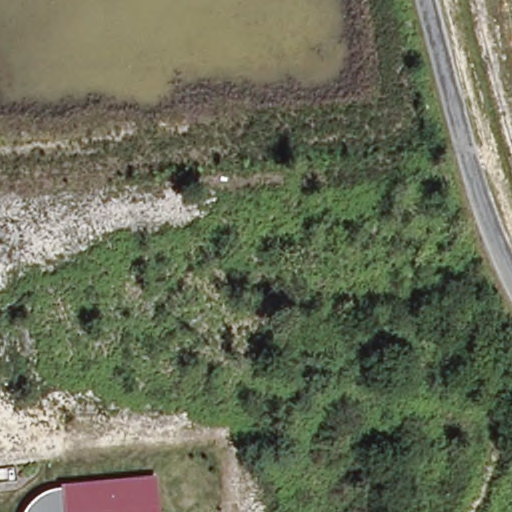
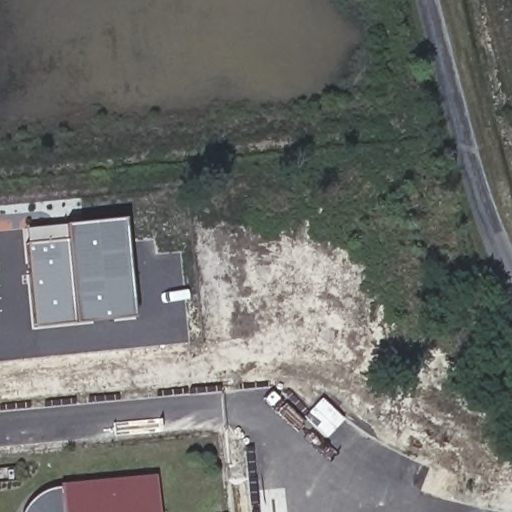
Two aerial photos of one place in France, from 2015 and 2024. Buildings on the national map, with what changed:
new [(26,230),(122,220),(132,316),(36,326),(26,230)]
unchanged [(41,492),(51,488),(60,487),(59,484),(155,475),(158,512),(22,512),(30,501),(41,492)]

